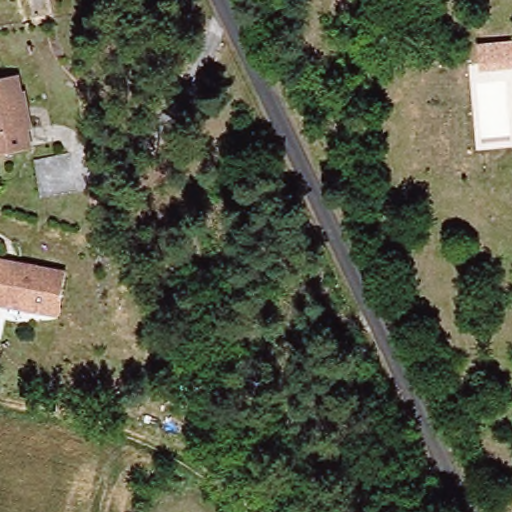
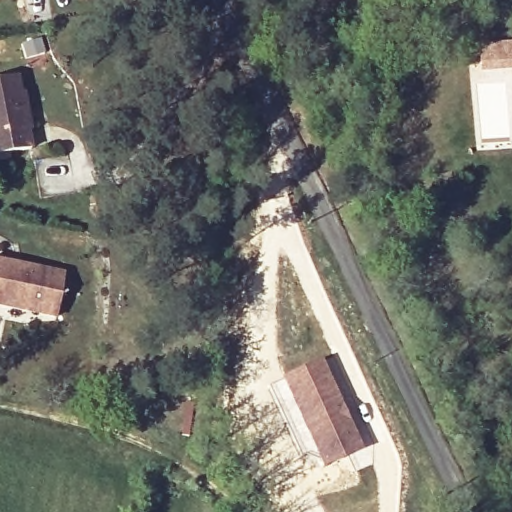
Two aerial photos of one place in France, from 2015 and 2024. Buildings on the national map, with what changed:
new [(512,65),(495,66),(476,68),(476,48),(496,47),(512,44),(512,65)]
unchanged [(0,154),(0,78),(16,75),(19,92),(22,91),(29,129),(27,130),(30,149),(0,154)]
unchanged [(65,279),(56,319),(0,306),(0,264),(65,279)]
new [(322,359),(365,448),(323,469),(280,381),(322,359)]

